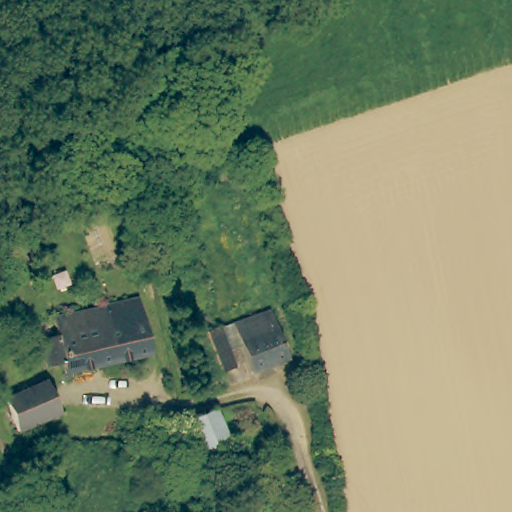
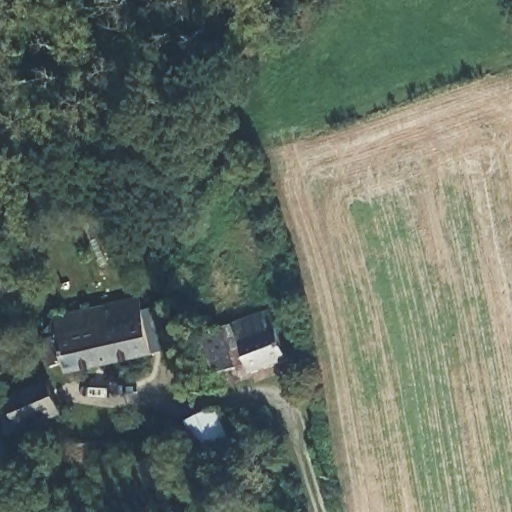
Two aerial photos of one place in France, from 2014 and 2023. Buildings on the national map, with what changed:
unchanged [(144,338),(146,350),(122,354),(61,371),(59,362),(44,365),(39,344),(41,344),(39,334),(51,331),(49,323),(48,313),(80,305),(85,304),(100,302),(100,304),(102,304),(136,296),(139,315),(144,338)]
unchanged [(229,357),(218,361),(222,374),(202,382),(181,328),(186,326),(181,310),(203,303),(204,303),(207,312),(212,310),(215,317),(229,357)]
unchanged [(283,356),(248,368),(231,320),(265,307),(271,322),(283,356)]
unchanged [(8,393),(36,381),(43,378),(56,412),(21,426),(8,393)]
unchanged [(217,405),(227,441),(199,448),(189,414),(217,405)]
unchanged [(162,454),(159,457),(157,458),(155,459),(154,459),(150,459),(146,458),(145,456),(144,455),(143,453),(141,447),(142,443),(144,439),(146,438),(146,437),(150,434),(162,437),(165,437),(166,437),(165,445),(164,455),(162,454)]

